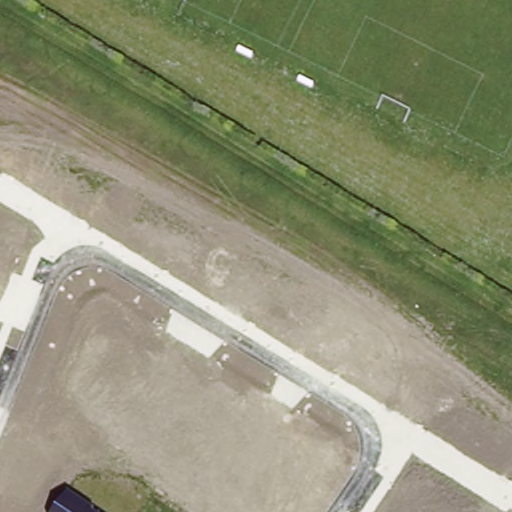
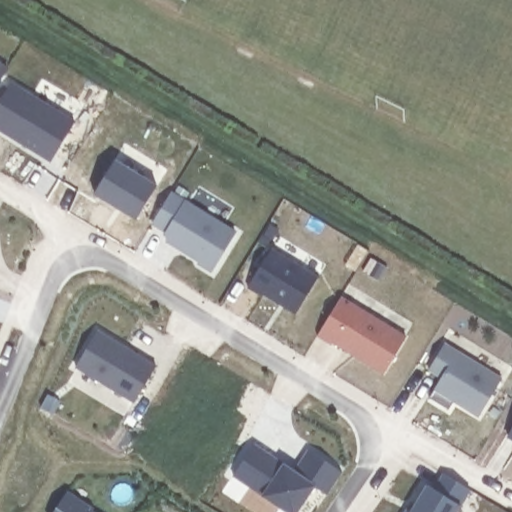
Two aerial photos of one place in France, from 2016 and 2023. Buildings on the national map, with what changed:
new [(8,68),(0,81),(0,62),(8,68)]
new [(6,82),(73,121),(49,161),(0,131),(0,93),(6,82)]
new [(171,190),(236,232),(211,272),(196,263),(197,261),(161,238),(163,233),(151,223),(171,190)]
new [(271,247),(318,275),(296,314),(261,294),(261,295),(246,287),(271,247)]
new [(340,294),(407,336),(384,373),(331,342),(331,344),(316,336),(340,294)]
new [(98,329),(156,365),(133,401),(73,365),(98,329)]
new [(438,379),(426,370),(445,342),(501,379),(479,417),(433,389),(438,379)]
new [(512,440),(507,436),(512,427),(512,440)]
new [(284,462),(290,467),(308,447),(343,472),(326,494),(314,485),(297,512),(286,512),(261,495),(231,475),(253,442),(284,462)]
new [(414,503),(427,484),(429,485),(442,472),(469,489),(457,502),(461,505),(457,512),(402,512),(409,501),(414,503)]
unchanged [(94,506),(92,510),(94,512),(54,512),(68,491),(94,506)]

